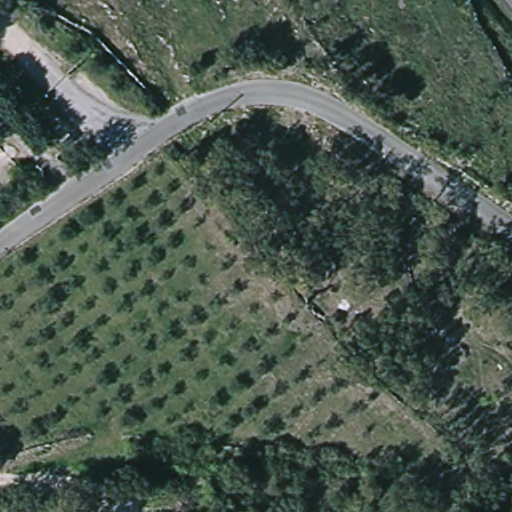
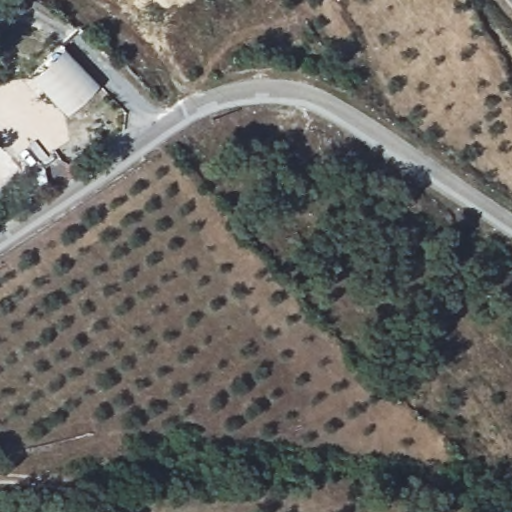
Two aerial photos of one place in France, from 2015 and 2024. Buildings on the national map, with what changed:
new [(97,85),(65,114),(30,78),(63,47),(97,85)]

